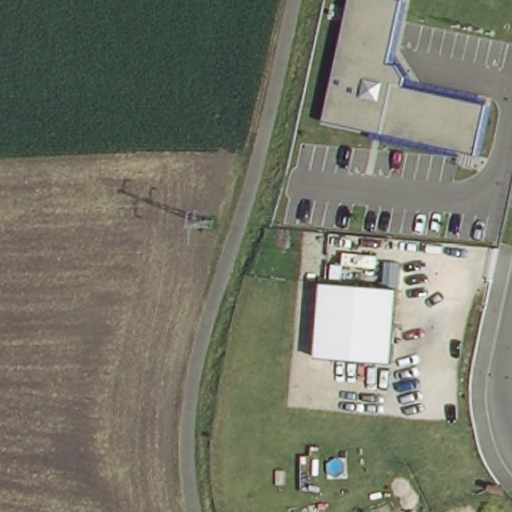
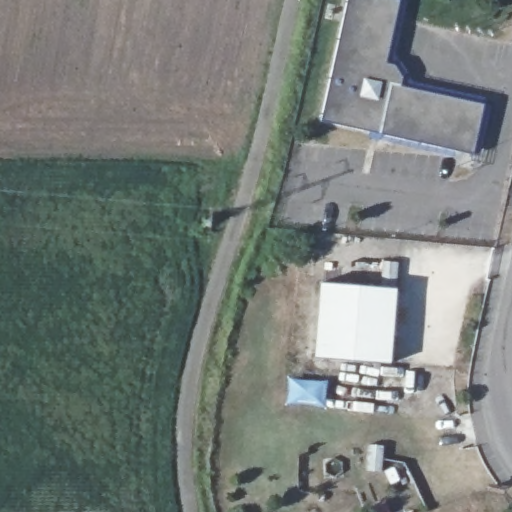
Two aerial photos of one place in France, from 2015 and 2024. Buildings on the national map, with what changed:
unchanged [(349,0),(398,0),(400,1),(387,63),(395,66),(404,80),(402,87),(485,105),(474,155),(323,120),(349,0)]
unchanged [(321,284),(397,291),(390,364),(316,357),(321,284)]

